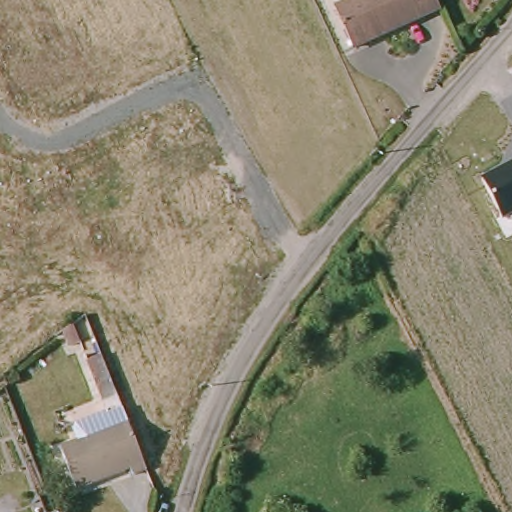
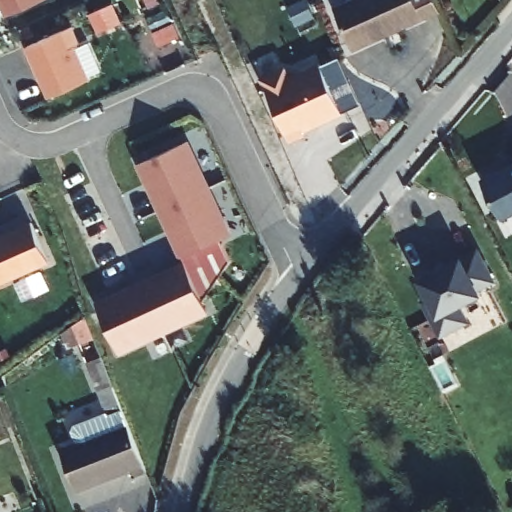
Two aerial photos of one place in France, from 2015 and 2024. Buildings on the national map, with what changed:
new [(44,0),(7,16),(0,0),(44,0)]
unchanged [(367,0),(432,0),(439,15),(352,54),(334,14),(367,0)]
new [(120,23),(98,33),(90,14),(112,4),(120,23)]
new [(174,23),(180,37),(159,46),(152,32),(174,23)]
new [(27,46),(72,26),(79,43),(74,46),(89,80),(50,97),(27,46)]
new [(315,126),(312,125),(302,128),(305,134),(290,141),(262,79),(285,68),(290,78),(320,63),(342,113),(315,126)]
new [(185,263),(140,163),(187,141),(230,235),(220,239),(230,261),(203,301),(207,311),(119,351),(97,304),(185,263)]
unchanged [(512,166),(512,217),(502,221),(482,181),(512,166)]
new [(49,262),(0,283),(0,237),(32,222),(49,262)]
new [(478,289),(480,293),(459,304),(468,321),(441,335),(422,301),(429,297),(420,279),(437,271),(444,267),(477,249),(494,280),(478,289)]
new [(42,274),(49,288),(23,300),(17,286),(42,274)]
unchanged [(67,350),(60,334),(72,326),(79,344),(67,350)]
unchanged [(60,456),(77,449),(72,437),(75,431),(99,422),(105,419),(85,368),(100,363),(145,477),(132,483),(129,475),(75,496),(60,456)]

